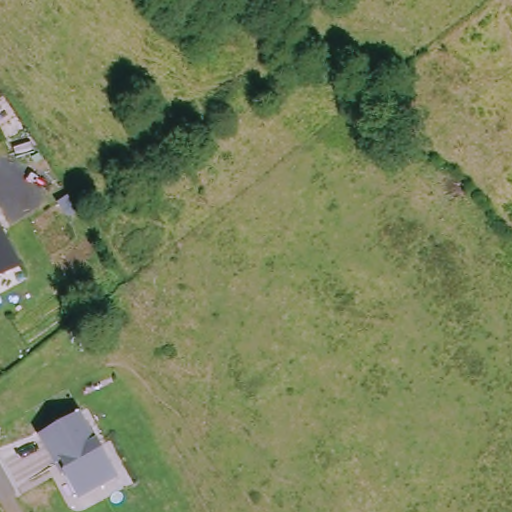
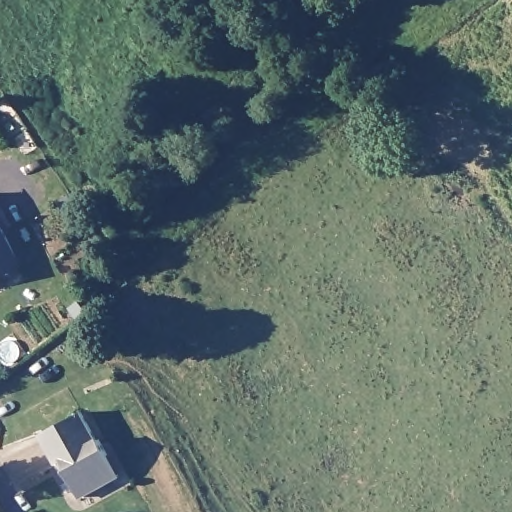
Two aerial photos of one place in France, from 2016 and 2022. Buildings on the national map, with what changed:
unchanged [(0,277),(0,228),(20,266),(0,277)]
unchanged [(55,462),(38,433),(77,410),(94,438),(97,436),(105,452),(117,472),(111,476),(79,495),(64,471),(61,472),(55,462)]

